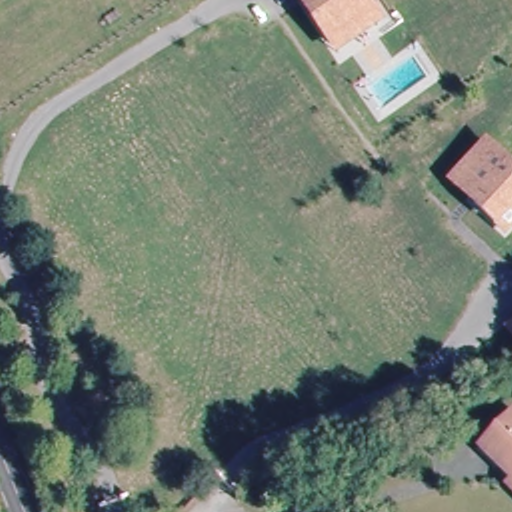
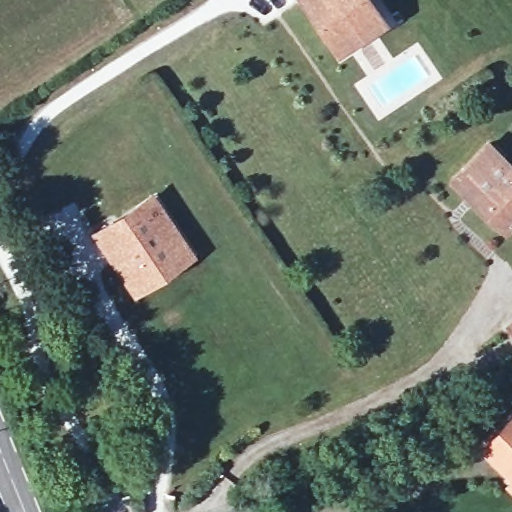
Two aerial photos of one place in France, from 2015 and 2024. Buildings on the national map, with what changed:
unchanged [(389,21),(337,55),(300,0),(374,0),(389,21)]
unchanged [(498,227),(447,180),(487,140),(512,164),(512,230),(507,235),(498,227)]
new [(194,254),(135,292),(90,230),(151,190),(194,254)]
unchanged [(505,325),(512,319),(512,334),(505,325)]
unchanged [(483,448),(512,418),(512,477),(483,448)]
unchanged [(512,485),(512,490),(509,487),(512,485)]

